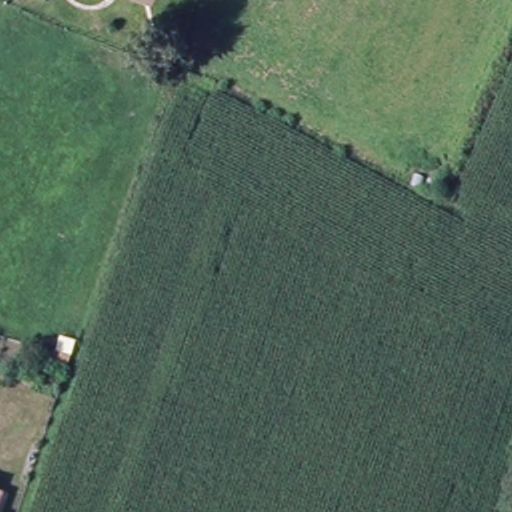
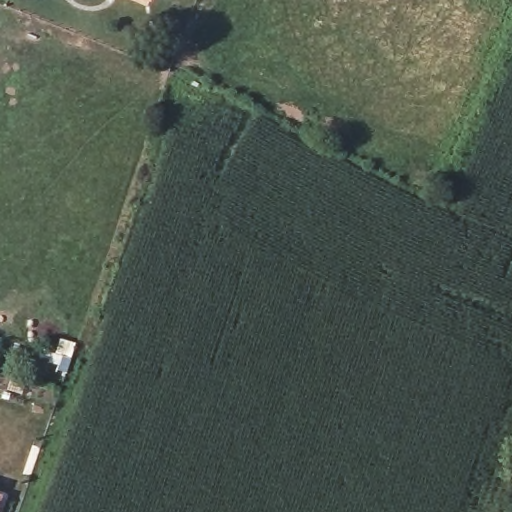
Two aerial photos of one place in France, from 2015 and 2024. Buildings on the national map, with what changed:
unchanged [(1,502),(0,506),(0,502),(1,502)]

